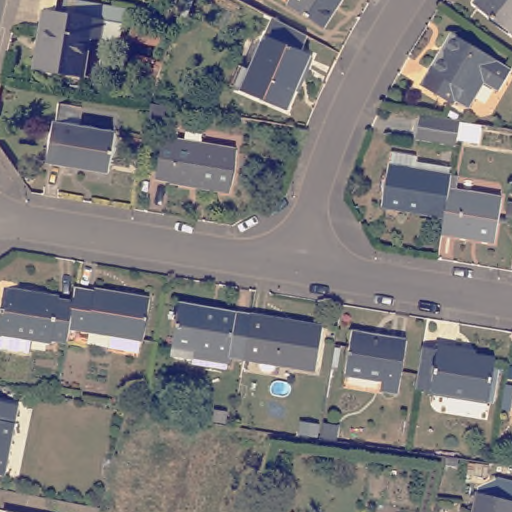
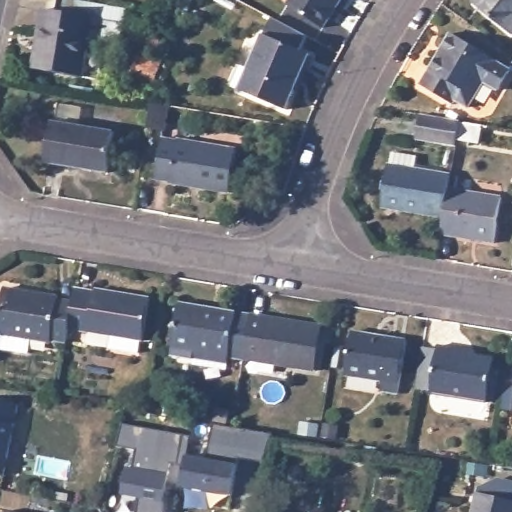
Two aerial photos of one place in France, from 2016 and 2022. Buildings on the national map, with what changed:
unchanged [(328,27),(293,5),(296,0),(346,0),(328,27)]
unchanged [(483,2),(485,0),(512,0),(512,27),(483,2)]
unchanged [(32,69),(43,10),(101,19),(98,39),(89,39),(83,77),(32,69)]
unchanged [(243,75),(254,80),(269,46),(277,28),(310,45),(304,61),(314,65),(290,119),(245,100),(234,95),(243,75)]
unchanged [(459,100),(457,103),(425,83),(456,33),(502,60),(502,63),(512,69),(512,75),(503,90),(488,82),(472,108),(459,100)]
unchanged [(168,129),(152,127),(156,102),(173,105),(168,129)]
unchanged [(477,144),(456,141),(455,147),(416,140),(420,114),(459,120),(458,125),(479,128),(477,144)]
unchanged [(45,163),(52,123),(114,133),(106,172),(45,163)]
unchanged [(176,183),(175,181),(160,178),(166,139),(181,141),(182,139),(240,149),(234,192),(176,183)]
unchanged [(393,164),(395,152),(420,156),(418,168),(455,174),(453,187),(448,218),(385,207),(393,164)]
unchanged [(506,196),(499,242),(445,234),(448,218),(453,187),(506,196)]
unchanged [(109,348),(111,336),(68,329),(71,303),(74,288),(93,291),(95,289),(150,298),(143,341),(141,340),(139,353),(109,348)]
unchanged [(51,343),(0,335),(0,309),(4,289),(58,298),(59,301),(71,303),(68,329),(66,342),(52,340),(51,343)]
unchanged [(244,359),(228,357),(226,370),(191,364),(192,359),(170,355),(178,304),(251,315),(244,359)]
unchanged [(323,326),(316,370),(244,359),(251,315),(323,326)]
unchanged [(380,386),(381,375),(345,369),(353,327),(406,335),(397,388),(380,386)]
unchanged [(472,349),(472,352),(504,357),(497,400),(442,391),(442,388),(425,386),(428,369),(432,346),(448,349),(449,345),(472,349)]
unchanged [(512,365),(512,378),(510,377),(512,364),(512,365)]
unchanged [(505,406),(508,384),(512,385),(512,407),(505,406)]
unchanged [(0,403),(16,405),(3,475),(0,474),(0,403)]
new [(190,434),(186,456),(206,459),(212,423),(273,431),(262,462),(239,458),(232,496),(181,487),(185,465),(178,464),(170,463),(167,480),(163,479),(162,486),(166,487),(162,512),(136,512),(139,496),(121,494),(126,466),(132,467),(135,449),(115,446),(121,423),(183,433),(190,434)]
unchanged [(469,512),(475,490),(512,499),(512,512),(469,512)]
unchanged [(20,512),(9,512),(10,510),(20,512)]

